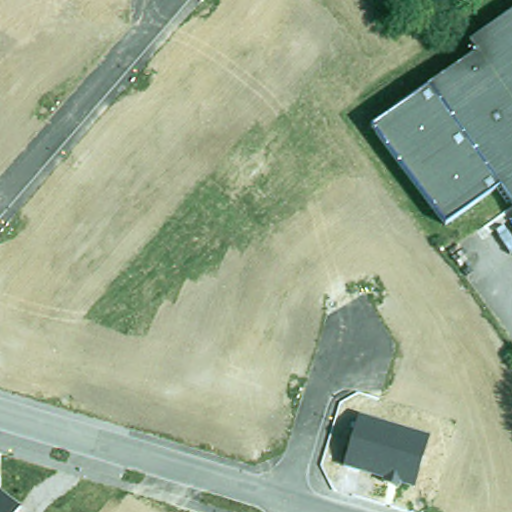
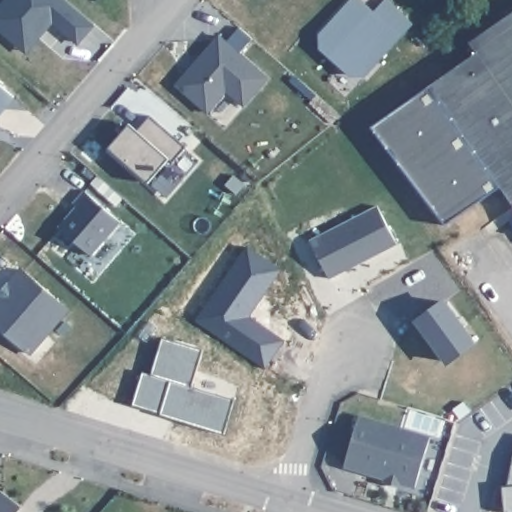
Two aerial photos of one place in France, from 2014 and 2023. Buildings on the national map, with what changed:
new [(0,22),(0,12),(11,0),(70,0),(98,25),(83,41),(58,20),(48,32),(31,50),(28,46),(0,22)]
new [(414,24),(365,78),(349,78),(319,51),(319,35),(348,0),(359,0),(373,12),(384,0),(390,0),(414,24)]
unchanged [(501,192),(429,91),(477,59),(468,46),(512,15),(512,207),(501,192)]
new [(271,78),(244,107),(228,94),(207,116),(173,88),(218,35),(271,78)]
unchanged [(0,114),(0,85),(14,97),(0,114)]
unchanged [(445,231),(374,128),(429,91),(501,192),(445,231)]
new [(125,120),(128,124),(141,109),(158,122),(154,126),(171,141),(139,176),(103,145),(125,120)]
new [(119,222),(91,256),(56,227),(85,193),(119,222)]
new [(398,244),(331,280),(309,241),(377,206),(398,244)]
new [(0,330),(0,292),(20,269),(66,311),(28,354),(0,330)]
new [(126,402),(136,368),(145,371),(156,335),(198,347),(186,384),(228,397),(218,432),(163,416),(154,412),(155,412),(126,402)]
unchanged [(430,438),(414,492),(384,483),(384,479),(341,467),(358,416),(430,438)]
new [(506,512),(503,512),(501,487),(512,485),(512,512),(506,512)]
unchanged [(20,512),(0,512),(0,494),(20,512)]

